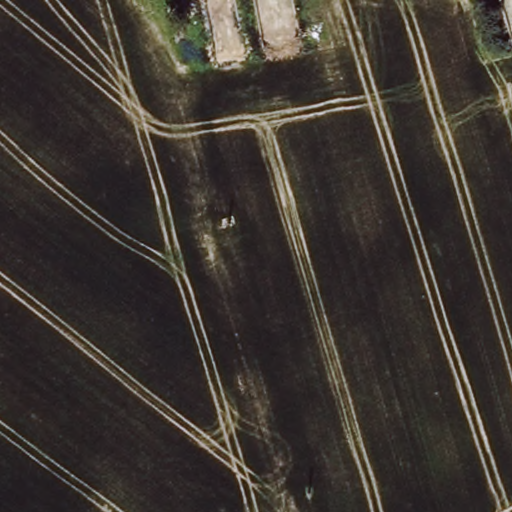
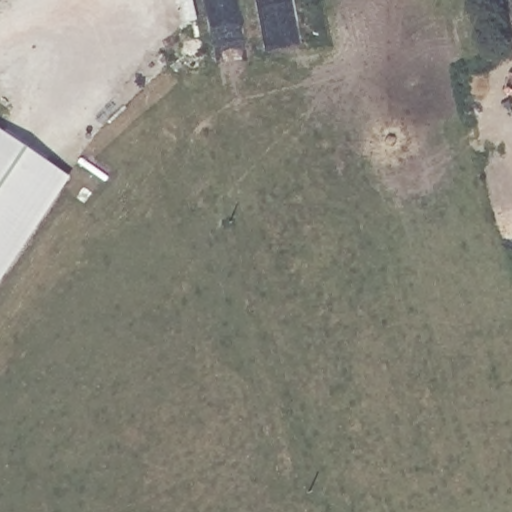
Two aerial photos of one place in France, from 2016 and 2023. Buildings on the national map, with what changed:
new [(71,177),(0,282),(0,130),(71,177)]

